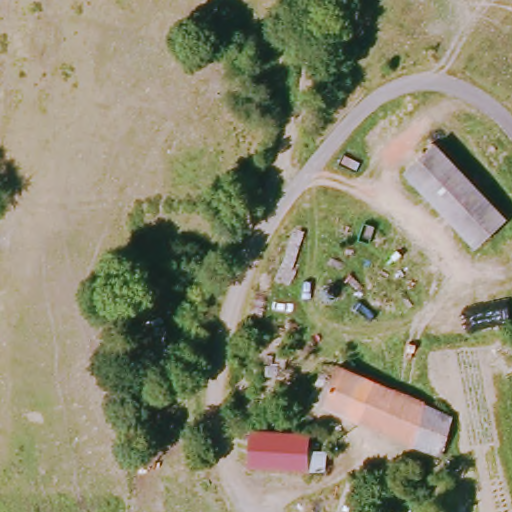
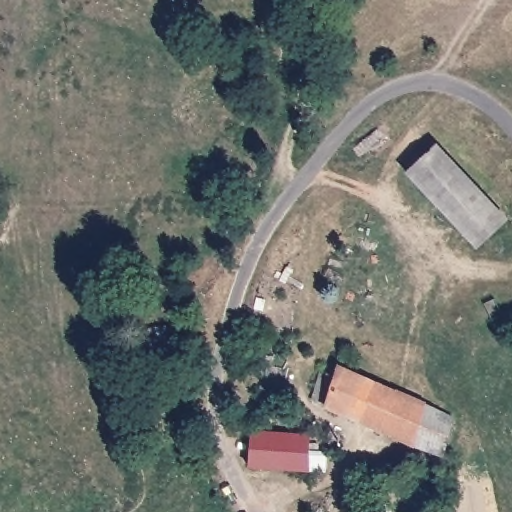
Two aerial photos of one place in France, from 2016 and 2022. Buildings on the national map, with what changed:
unchanged [(502,217),(477,247),(401,180),(427,150),(502,217)]
unchanged [(443,457),(317,403),(331,370),(460,425),(443,457)]
unchanged [(303,435),(302,470),(257,469),(259,433),(303,435)]

